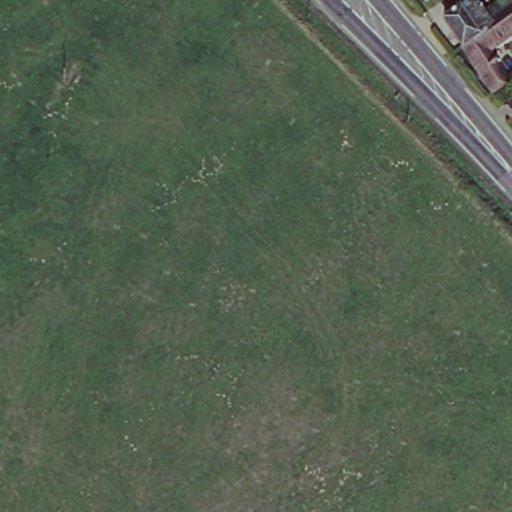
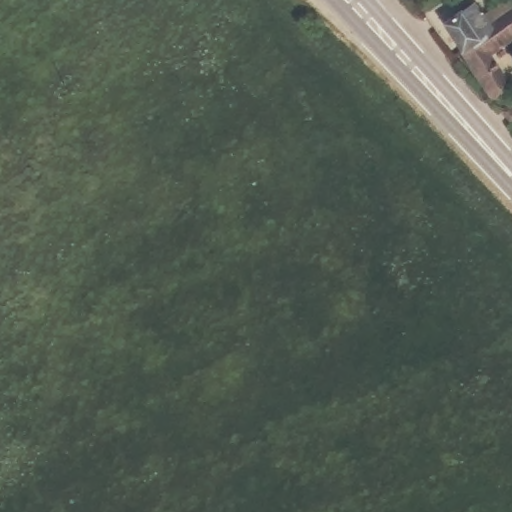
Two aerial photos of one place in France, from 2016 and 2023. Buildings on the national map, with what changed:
unchanged [(489,21),(512,4),(512,45),(490,60),(506,83),(492,95),(441,26),(474,1),(489,21)]

